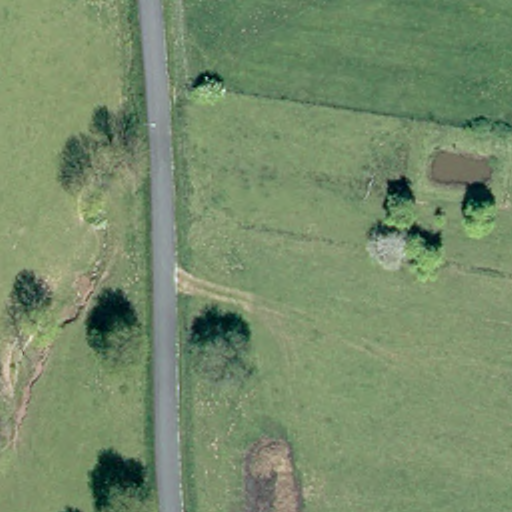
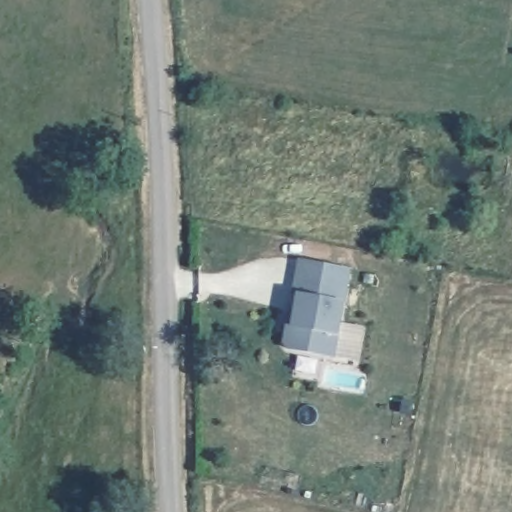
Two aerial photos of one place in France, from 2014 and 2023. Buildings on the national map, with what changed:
new [(282,342),(287,314),(293,314),(296,293),(299,261),(351,269),(345,303),(339,338),(335,359),(289,350),(282,342)]

